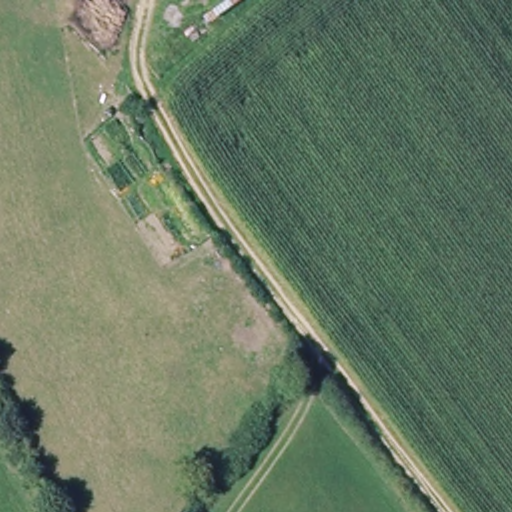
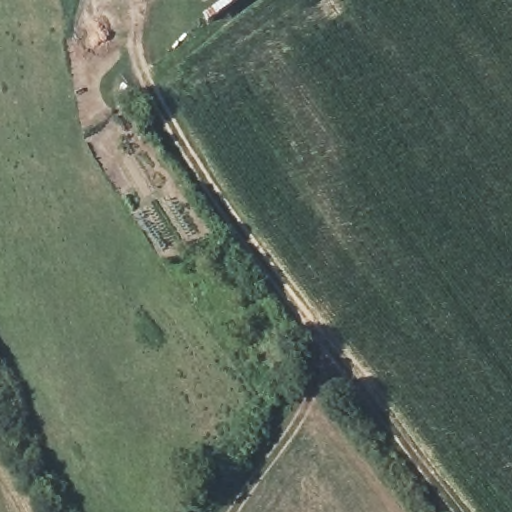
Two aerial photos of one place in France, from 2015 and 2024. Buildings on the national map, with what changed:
unchanged [(245,0),(249,0),(246,2),(245,0)]

